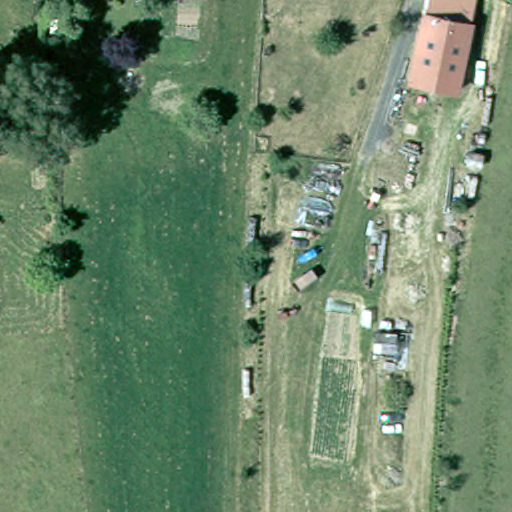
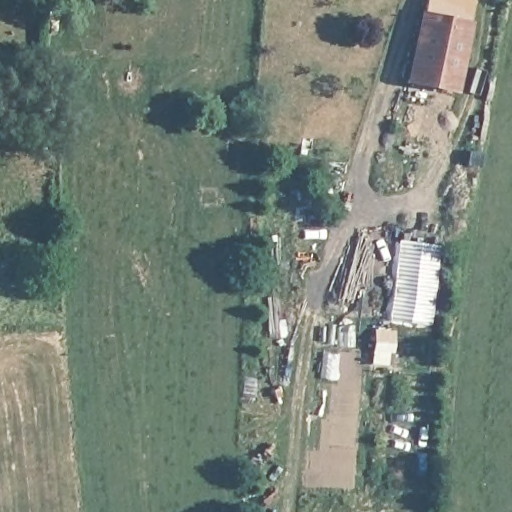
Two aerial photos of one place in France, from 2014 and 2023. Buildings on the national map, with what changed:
unchanged [(422,29),(424,29),(430,1),(472,10),(467,37),(467,38),(453,105),(408,95),(422,29)]
new [(399,239),(440,245),(431,323),(390,318),(399,239)]
new [(396,330),(393,365),(371,364),(375,328),(396,330)]

